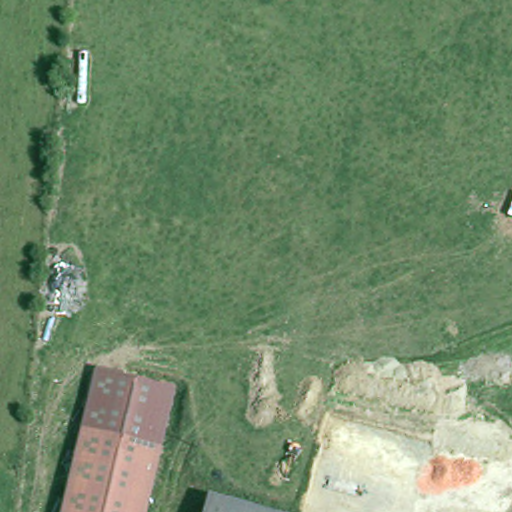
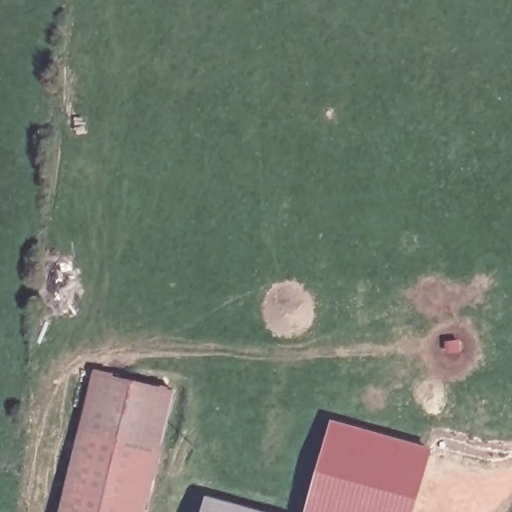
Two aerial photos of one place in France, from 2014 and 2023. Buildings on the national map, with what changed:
unchanged [(92,371),(175,389),(163,444),(87,427),(79,426),(92,371)]
new [(416,512),(308,512),(332,421),(434,449),(416,512)]
unchanged [(85,434),(87,427),(164,446),(153,491),(74,479),(85,434)]
unchanged [(153,491),(149,512),(66,512),(74,479),(153,491)]
unchanged [(214,501),(216,495),(264,508),(276,512),(211,512),(214,501)]

